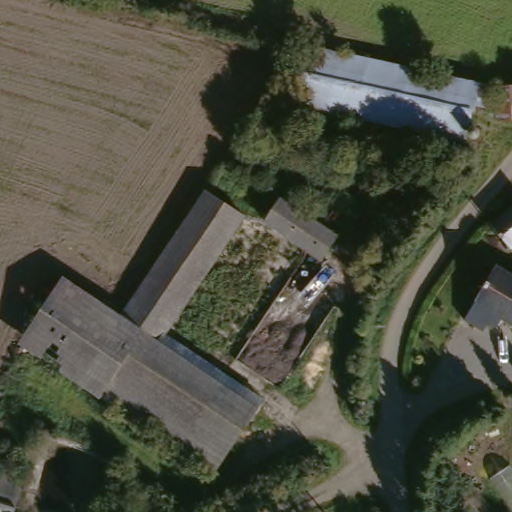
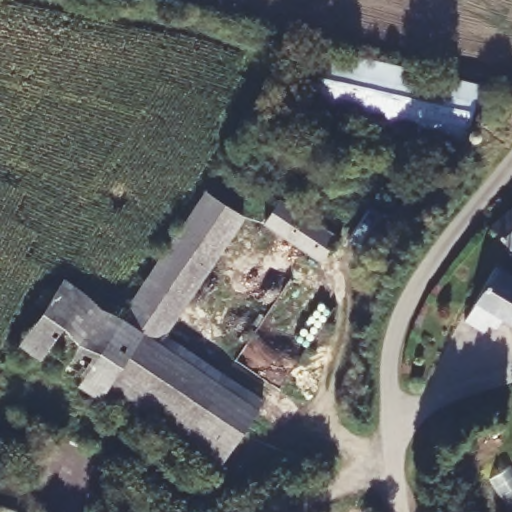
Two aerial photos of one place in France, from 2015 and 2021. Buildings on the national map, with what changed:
unchanged [(499,85),(493,109),(474,104),(463,144),(293,99),(306,41),(499,85)]
unchanged [(512,96),(512,121),(502,100),(512,96)]
unchanged [(245,217),(163,337),(129,314),(209,193),(245,217)]
unchanged [(344,230),(327,257),(271,221),(288,197),(344,230)]
unchanged [(512,245),(497,225),(512,215),(512,245)]
unchanged [(512,323),(478,302),(497,267),(512,276),(512,323)]
unchanged [(124,320),(129,314),(163,337),(263,402),(213,476),(101,403),(13,342),(59,277),(124,320)]
unchanged [(512,457),(512,504),(492,475),(512,457)]
unchanged [(28,486),(20,512),(0,512),(0,476),(28,486)]

